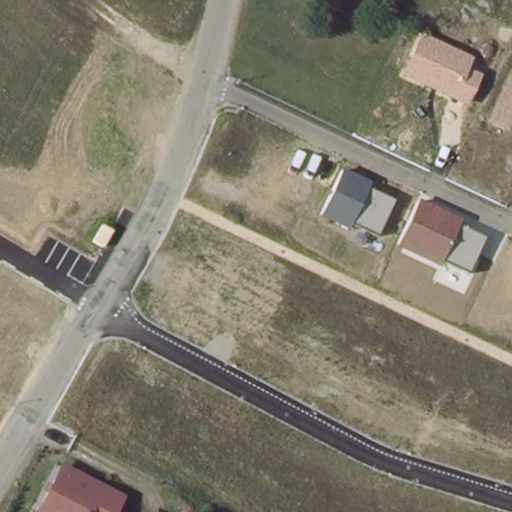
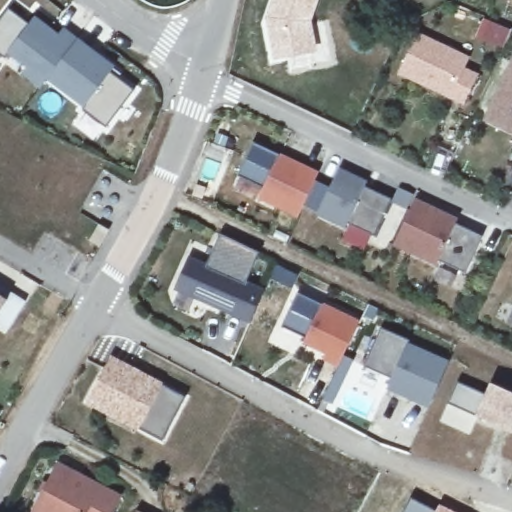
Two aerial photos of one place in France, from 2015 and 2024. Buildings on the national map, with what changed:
new [(319,0),(312,19),(318,52),(272,61),(263,16),(269,0),(319,0)]
new [(26,26),(33,16),(57,34),(63,29),(113,67),(108,74),(133,94),(104,129),(45,84),(40,91),(0,62),(3,59),(0,56),(0,21),(7,11),(26,26)]
unchanged [(472,58),(468,69),(481,74),(467,103),(403,76),(423,35),(472,58)]
unchanged [(512,134),(486,122),(512,66),(512,134)]
new [(320,215),(303,205),(298,217),(259,199),(265,189),(238,177),(254,143),(320,173),(316,182),(333,189),(320,215)]
unchanged [(377,235),(350,224),(348,229),(320,215),(341,171),(369,184),(367,189),(392,199),(377,235)]
unchanged [(466,274),(442,264),(438,268),(397,249),(418,201),(461,222),(458,227),(483,237),(466,274)]
new [(250,323),(176,290),(190,257),(208,264),(221,235),(260,253),(246,283),(266,292),(250,323)]
new [(25,304),(8,332),(0,327),(0,288),(25,304)]
new [(339,368),(323,361),(326,354),(304,344),(306,339),(283,328),(298,294),(361,322),(339,368)]
new [(428,408),(388,391),(393,377),(366,366),(383,330),(410,342),(408,344),(449,363),(428,408)]
new [(163,441),(139,428),(137,432),(87,403),(112,358),(112,356),(165,384),(163,388),(184,398),(163,441)]
new [(450,404),(459,383),(486,396),(492,383),(512,392),(512,429),(477,416),(450,404)]
unchanged [(117,494),(110,512),(30,512),(53,462),(117,494)]
new [(411,497),(435,509),(434,512),(403,512),(411,497)]
new [(435,509),(439,503),(457,512),(434,512),(435,509)]
unchanged [(138,512),(132,512),(133,510),(138,512)]

